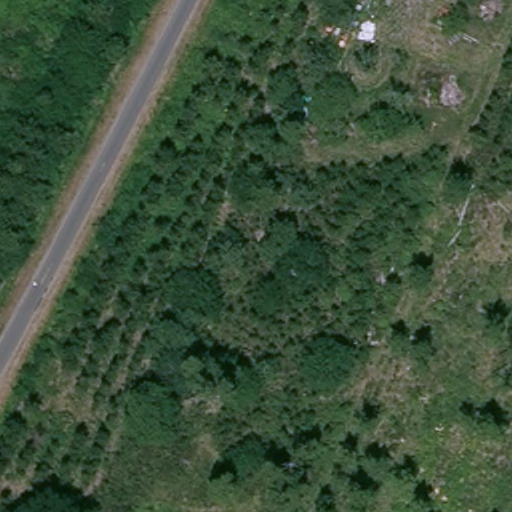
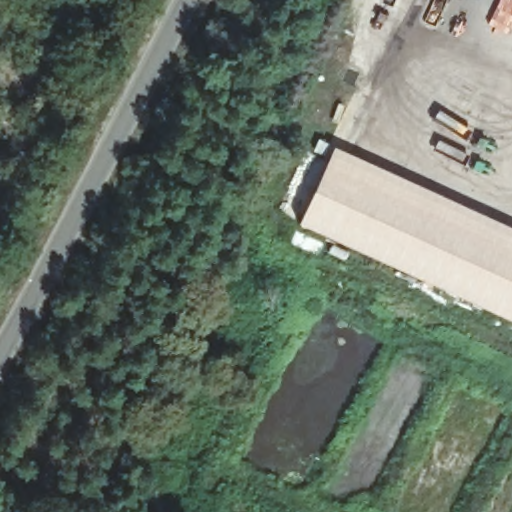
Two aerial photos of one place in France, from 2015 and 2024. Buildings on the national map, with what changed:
new [(333,146),(512,228),(512,322),(349,248),(343,260),(327,252),(333,241),(297,224),(333,146)]

